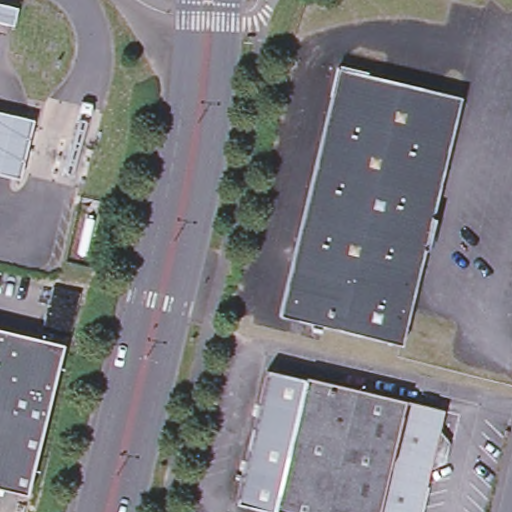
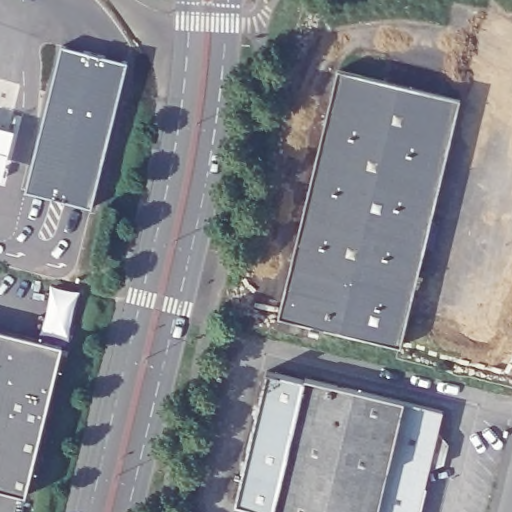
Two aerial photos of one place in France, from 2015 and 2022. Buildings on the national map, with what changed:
unchanged [(11,25),(0,22),(0,5),(15,9),(11,25)]
new [(127,67),(90,214),(25,195),(62,49),(127,67)]
unchanged [(335,71),(458,100),(400,345),(278,317),(335,71)]
unchanged [(17,179),(0,175),(0,115),(30,122),(17,179)]
unchanged [(25,496),(0,490),(0,330),(62,345),(25,496)]
unchanged [(275,512),(237,502),(269,371),(307,381),(275,512)]
unchanged [(307,378),(445,411),(421,512),(275,512),(307,381),(307,378)]

